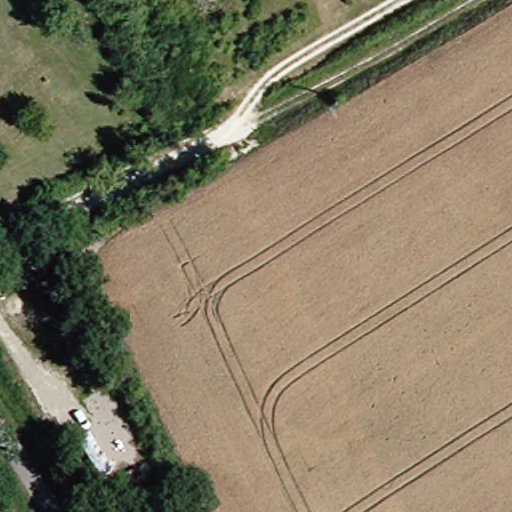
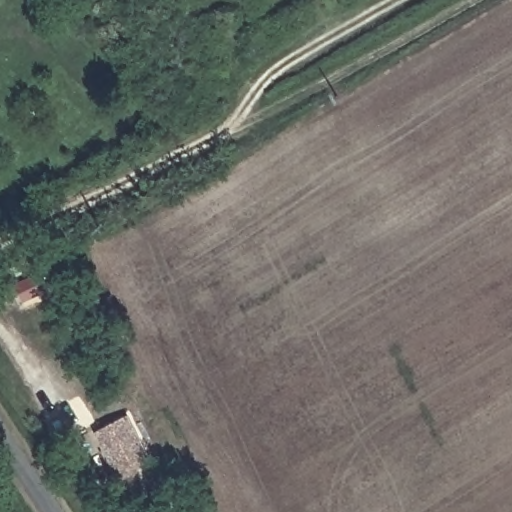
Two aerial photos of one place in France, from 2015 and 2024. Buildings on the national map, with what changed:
new [(145,490),(132,497),(97,432),(130,416),(153,465),(137,473),(145,490)]

